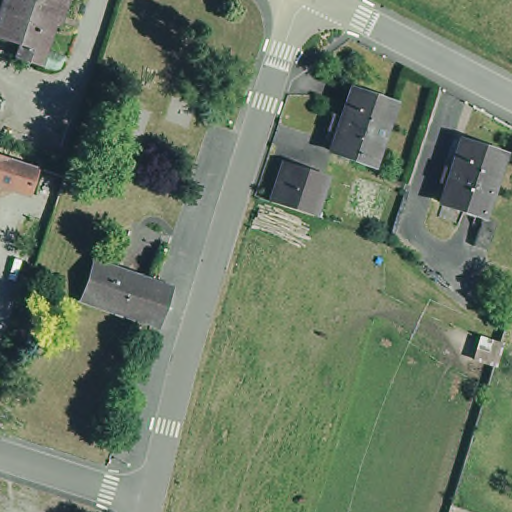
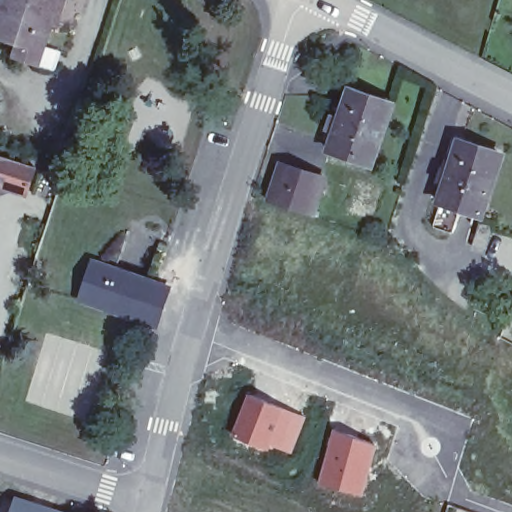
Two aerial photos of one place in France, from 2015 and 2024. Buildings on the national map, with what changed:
unchanged [(7,0),(0,22),(0,0),(7,0)]
unchanged [(62,9),(49,51),(47,51),(42,64),(20,57),(25,43),(0,35),(0,22),(7,0),(71,0),(67,11),(62,9)]
unchanged [(347,81),(391,96),(371,157),(327,143),(347,81)]
unchanged [(482,213),(438,199),(458,139),(501,153),(482,213)]
unchanged [(40,167),(28,200),(0,188),(0,154),(40,167)]
unchanged [(282,160),(325,173),(312,212),(270,198),(282,160)]
unchanged [(482,215),(497,220),(487,248),(473,243),(482,215)]
unchanged [(169,288),(157,326),(78,299),(92,261),(169,288)]
new [(247,392),(307,416),(292,453),(270,444),(267,449),(230,433),(247,392)]
new [(332,428),(377,443),(362,495),(316,482),(332,428)]
new [(13,494),(70,512),(7,512),(13,494)]

